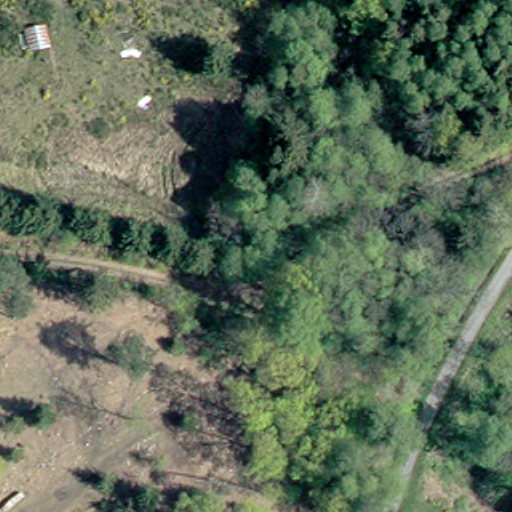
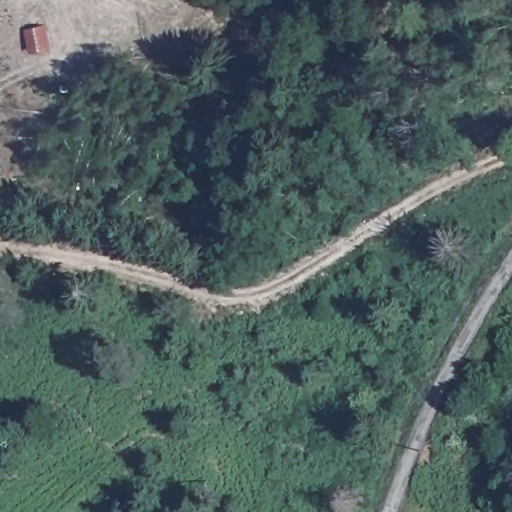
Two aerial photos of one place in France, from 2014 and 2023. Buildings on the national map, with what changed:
unchanged [(427,18),(392,52),(375,36),(411,1),(427,18)]

